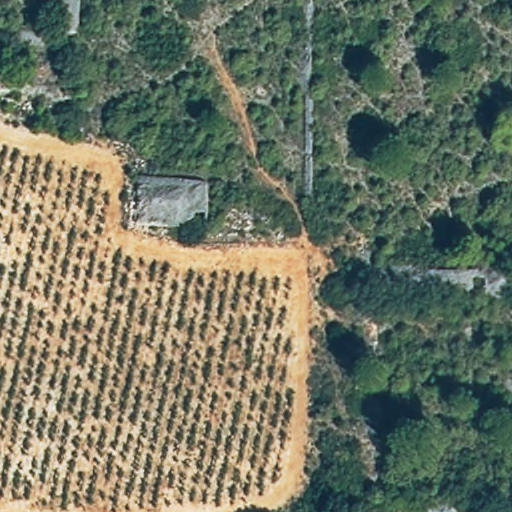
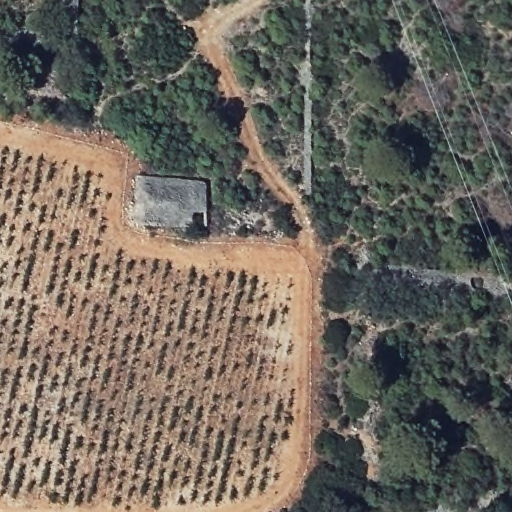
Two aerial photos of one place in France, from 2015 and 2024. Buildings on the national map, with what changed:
unchanged [(135,218),(138,172),(205,180),(207,228),(135,218)]

